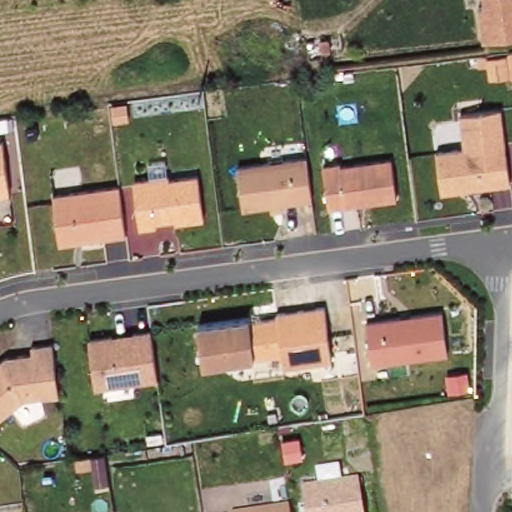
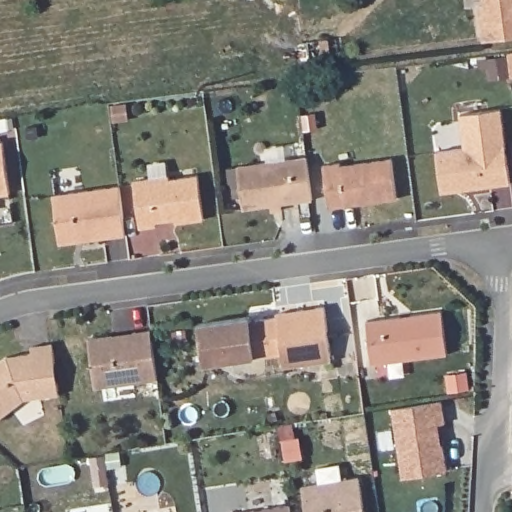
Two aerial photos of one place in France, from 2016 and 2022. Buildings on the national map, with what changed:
unchanged [(488,40),(483,6),(489,5),(488,0),(512,0),(512,36),(488,40)]
unchanged [(461,116),(503,110),(512,177),(512,185),(445,192),(440,152),(466,149),(461,116)]
unchanged [(11,194),(0,195),(0,142),(4,142),(11,194)]
unchanged [(315,200),(245,210),(240,167),(308,157),(315,200)]
unchanged [(395,159),(400,199),(332,207),(331,204),(326,165),(343,163),(345,166),(395,159)]
unchanged [(200,176),(205,218),(176,223),(176,220),(161,222),(161,227),(144,228),(138,181),(172,176),(174,179),(200,176)]
unchanged [(128,237),(62,246),(56,196),(120,189),(128,237)]
unchanged [(326,306),(333,361),(288,367),(286,356),(257,358),(206,364),(202,323),(248,317),(279,316),(278,312),(326,306)]
unchanged [(450,353),(375,364),(370,322),(443,312),(450,353)]
unchanged [(159,379),(100,386),(94,338),(153,330),(159,379)]
unchanged [(61,393),(25,398),(0,418),(0,361),(6,356),(34,353),(35,346),(55,344),(61,393)]
new [(443,401),(445,422),(439,424),(446,470),(403,477),(393,409),(443,401)]
unchanged [(360,477),(366,512),(309,512),(305,487),(360,477)]
unchanged [(293,512),(255,512),(292,507),(293,512)]

